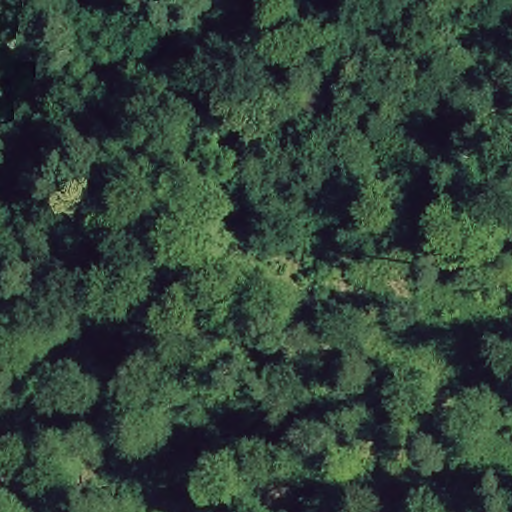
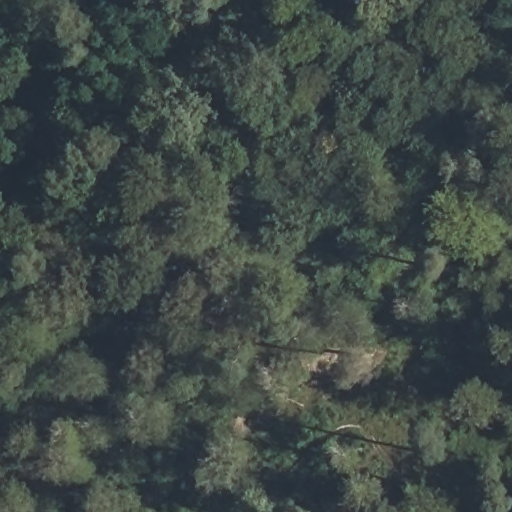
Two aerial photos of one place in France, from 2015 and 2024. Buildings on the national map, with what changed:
unchanged [(307,106),(348,65),(368,84),(333,124),(307,106)]

